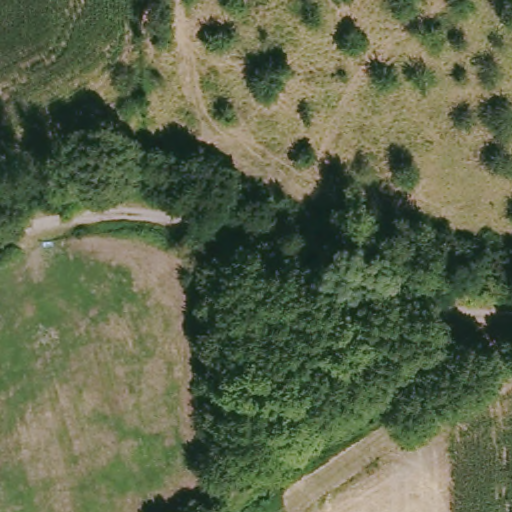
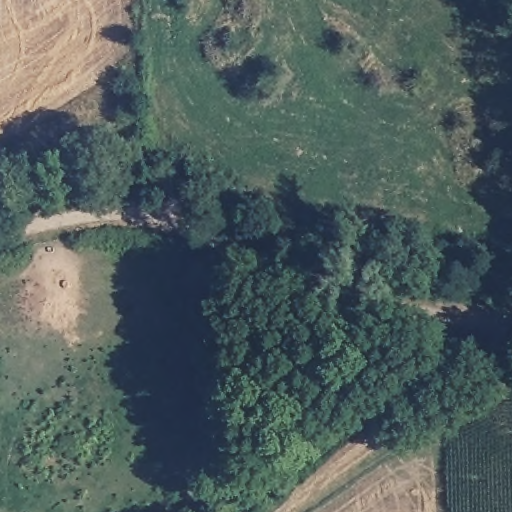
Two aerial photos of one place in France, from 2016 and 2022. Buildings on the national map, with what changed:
unchanged [(93,169),(61,171),(61,153),(92,145),(93,169)]

